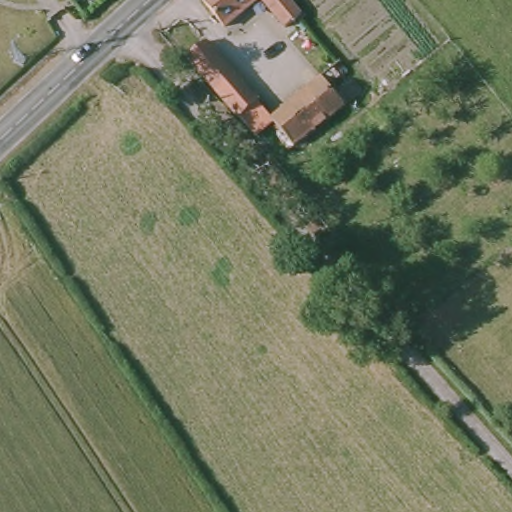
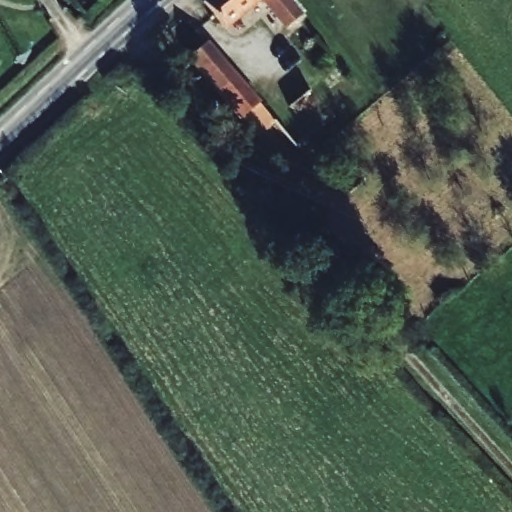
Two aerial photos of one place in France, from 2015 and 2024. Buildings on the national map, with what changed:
unchanged [(267,5),(263,1),(225,33),(203,7),(211,0),(285,0),(302,21),(286,34),(264,7),(267,5)]
unchanged [(188,59),(207,43),(260,103),(241,120),(188,59)]
unchanged [(296,147),(273,120),(323,78),(346,106),(296,147)]

